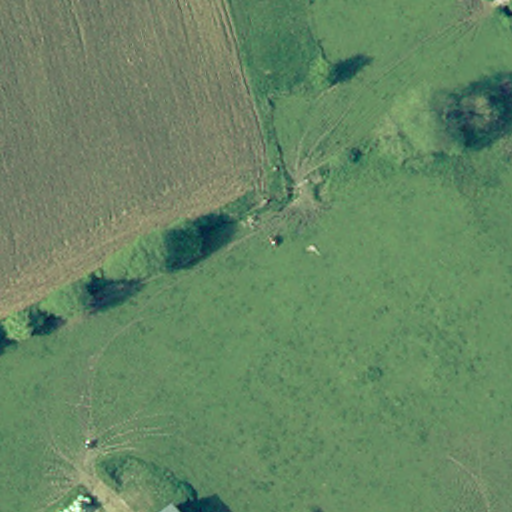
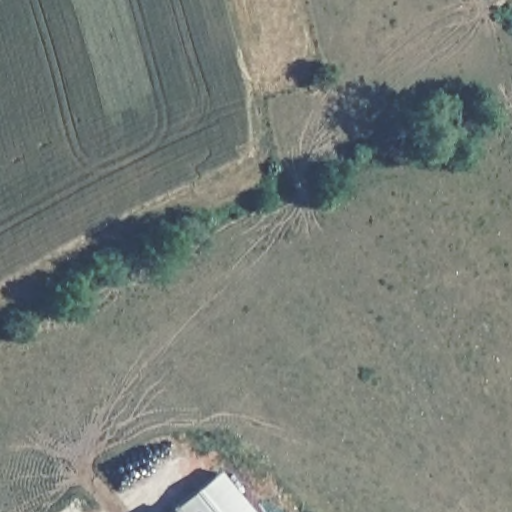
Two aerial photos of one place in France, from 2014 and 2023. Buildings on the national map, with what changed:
new [(173,508),(218,470),(252,512),(177,512),(173,508)]
unchanged [(173,508),(177,512),(169,512),(173,508)]

